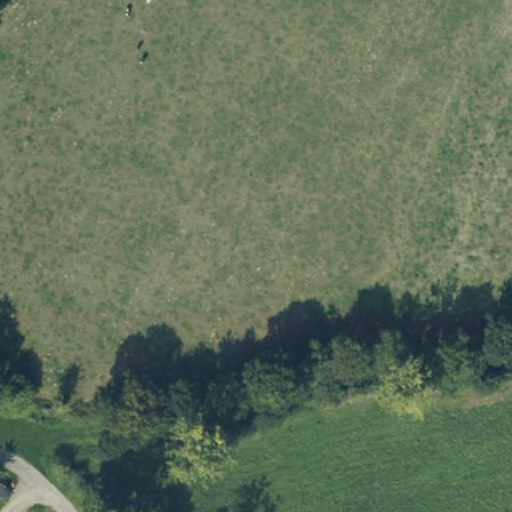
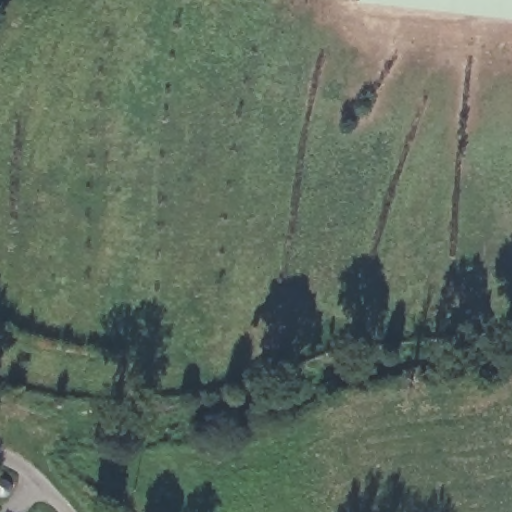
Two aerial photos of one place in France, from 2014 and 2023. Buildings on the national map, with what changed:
new [(360,0),(512,0),(512,20),(360,4),(360,0)]
unchanged [(15,478),(15,479),(15,481),(15,482),(14,484),(13,487),(12,489),(10,490),(8,491),(5,491),(2,490),(1,490),(0,490),(0,473),(1,473),(4,472),(5,472),(7,473),(14,476),(15,478)]

